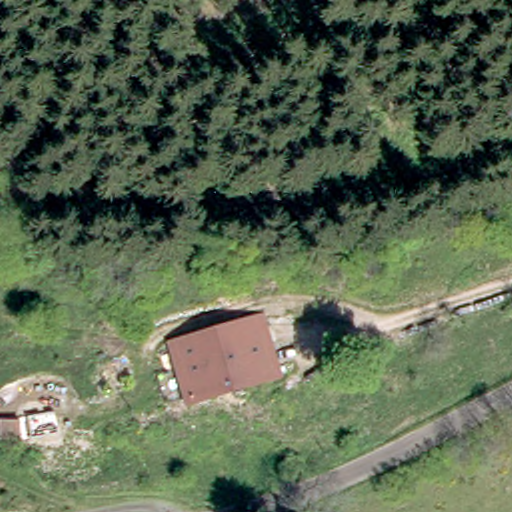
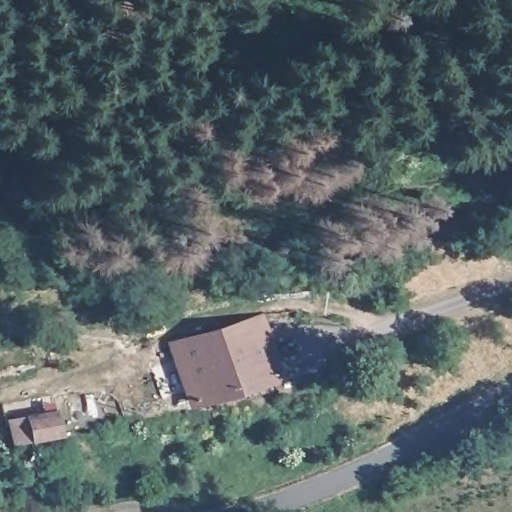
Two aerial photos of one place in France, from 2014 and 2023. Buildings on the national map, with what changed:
unchanged [(248,0),(278,0),(282,10),(256,21),(248,0)]
unchanged [(173,351),(261,323),(281,380),(194,409),(173,351)]
new [(56,414),(60,439),(10,448),(4,419),(56,412),(56,414)]
demolished [(69,424),(73,450),(37,455),(33,428),(68,423),(69,423),(69,424)]

